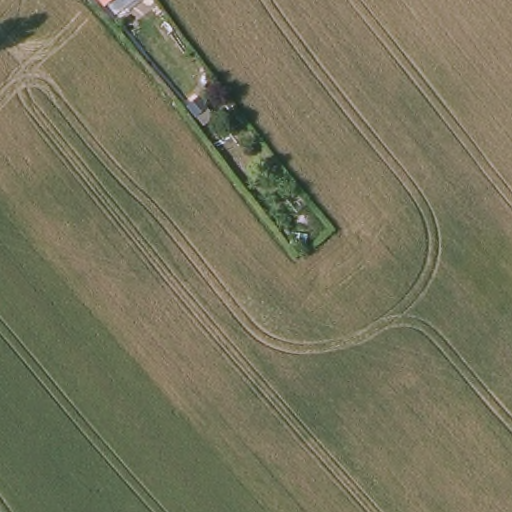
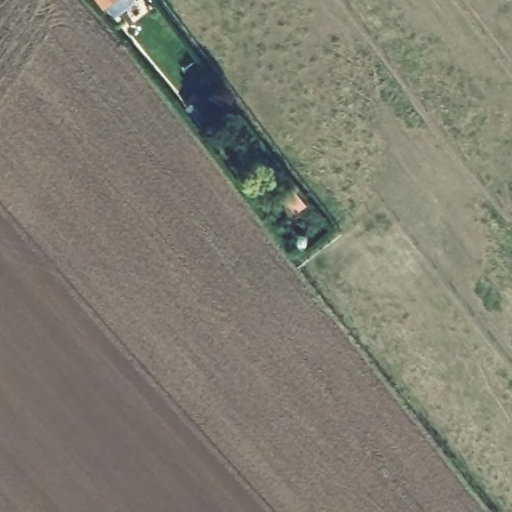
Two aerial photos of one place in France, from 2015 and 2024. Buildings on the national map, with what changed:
unchanged [(100,11),(91,0),(113,0),(100,11)]

